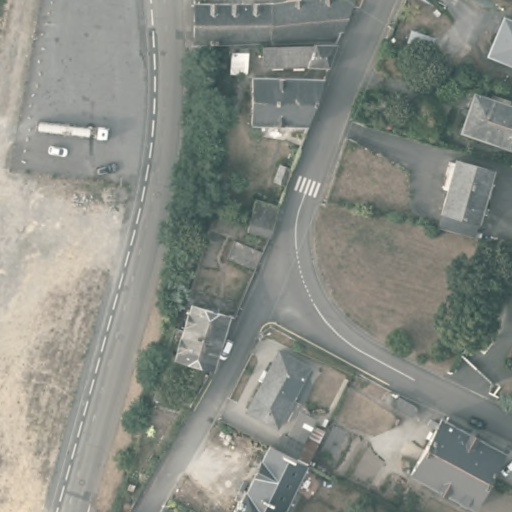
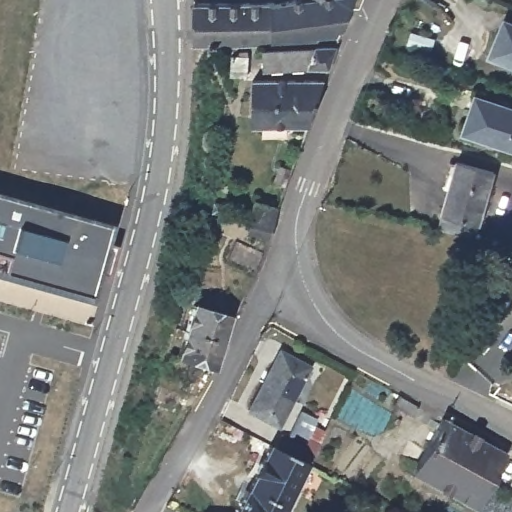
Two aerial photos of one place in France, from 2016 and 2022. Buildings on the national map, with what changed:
unchanged [(272,4),(298,3),(299,0),(355,0),(341,46),(320,46),(319,51),(270,52),(270,43),(272,43),(272,4)]
unchanged [(195,4),(242,4),(270,4),(272,4),(272,43),(270,43),(195,44),(195,4)]
unchanged [(491,51),(505,15),(512,18),(512,60),(491,51)]
unchanged [(341,46),(334,70),(270,69),(270,52),(319,51),(320,46),(341,46)]
unchanged [(244,56),(245,51),(252,52),(251,79),(237,78),(237,56),(244,56)]
unchanged [(312,136),(295,135),(295,129),(257,128),(258,82),(329,85),(312,136)]
unchanged [(512,102),(512,143),(465,128),(477,90),(512,102)]
unchanged [(486,217),(448,208),(461,155),(498,165),(486,217)]
unchanged [(272,192),(280,169),(293,174),(285,197),(272,192)]
new [(114,245),(106,277),(97,274),(90,302),(0,277),(0,193),(111,224),(107,243),(114,245)]
unchanged [(255,199),(280,206),(271,235),(247,229),(250,219),(255,199)]
unchanged [(197,303),(234,314),(226,340),(190,329),(197,303)]
unchanged [(226,340),(217,368),(187,358),(185,367),(187,367),(181,389),(164,383),(173,353),(181,356),(190,329),(226,340)]
unchanged [(309,366),(277,426),(248,409),(280,350),(309,366)]
unchanged [(411,409),(415,412),(410,421),(391,409),(398,399),(412,407),(411,409)]
unchanged [(471,512),(409,479),(441,423),(504,456),(471,512)]
unchanged [(282,433),(303,444),(296,458),(298,459),(315,427),(323,431),(307,464),(333,477),(329,484),(321,479),(318,481),(300,472),(282,509),(285,511),(284,512),(233,512),(245,488),(248,489),(256,473),(254,472),(261,459),(262,459),(270,444),(275,447),(282,433)]

